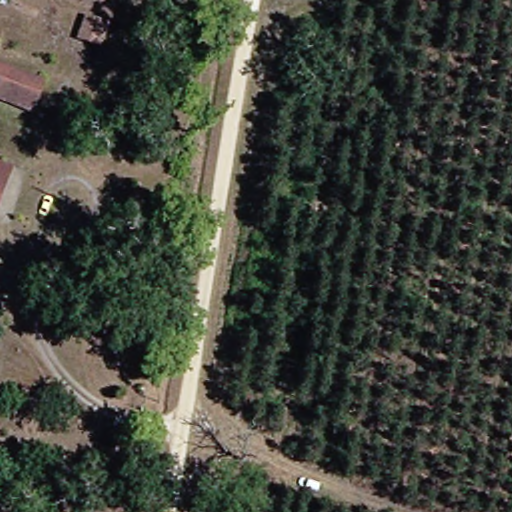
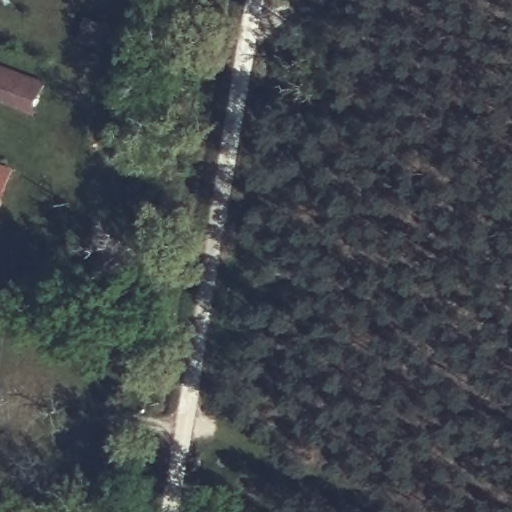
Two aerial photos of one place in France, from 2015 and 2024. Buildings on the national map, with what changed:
unchanged [(25,109),(0,100),(0,67),(34,79),(25,109)]
unchanged [(0,187),(0,166),(6,168),(0,187)]

